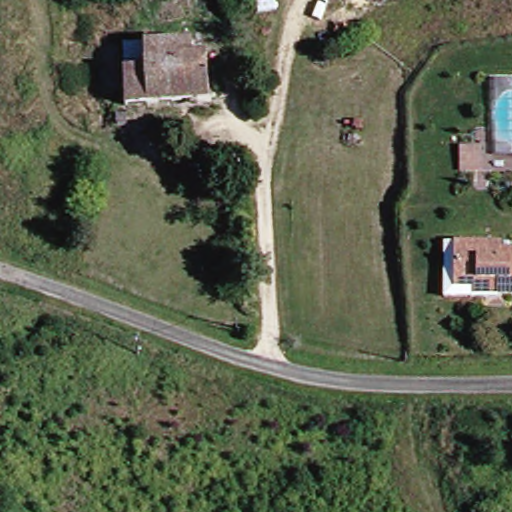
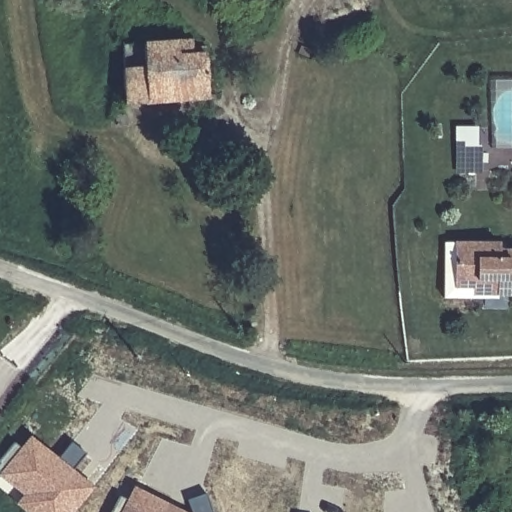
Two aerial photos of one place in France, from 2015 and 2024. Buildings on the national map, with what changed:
unchanged [(120,105),(118,44),(185,40),(186,55),(201,54),(204,100),(120,105)]
unchanged [(121,125),(110,124),(111,114),(121,115),(121,125)]
unchanged [(449,288),(450,242),(495,242),(494,249),(512,249),(512,296),(500,296),(467,296),(467,288),(449,288)]
new [(23,504),(30,496),(0,472),(0,461),(14,442),(24,450),(31,440),(57,461),(71,443),(86,454),(65,480),(85,495),(77,504),(71,512),(32,512),(28,508),(23,504)]
new [(130,501),(135,492),(167,507),(165,512),(112,512),(120,496),(130,501)]
new [(206,494),(213,512),(192,512),(188,500),(206,494)]

